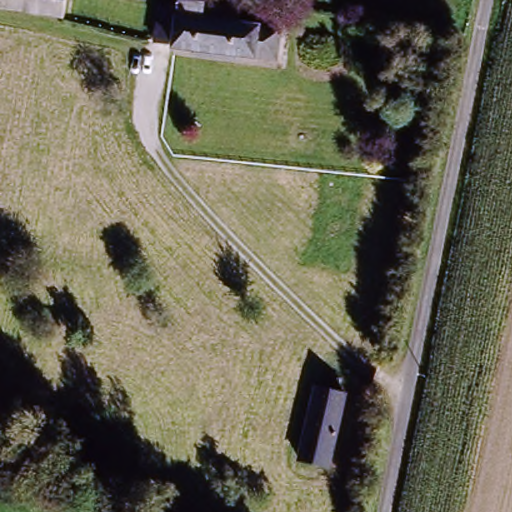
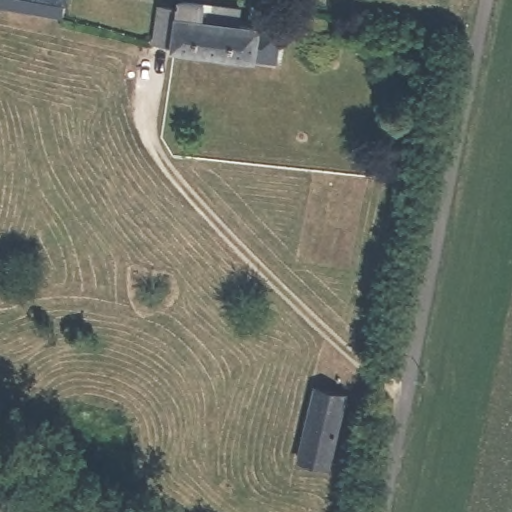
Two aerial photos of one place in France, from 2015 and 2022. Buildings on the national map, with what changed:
unchanged [(76,0),(70,24),(0,9),(0,0),(76,0)]
unchanged [(299,43),(292,75),(170,49),(179,15),(191,18),(195,1),(219,5),(261,14),(259,28),(258,34),(299,43)]
unchanged [(288,458),(308,386),(338,396),(319,466),(288,458)]
unchanged [(338,396),(356,399),(336,472),(319,466),(338,396)]

